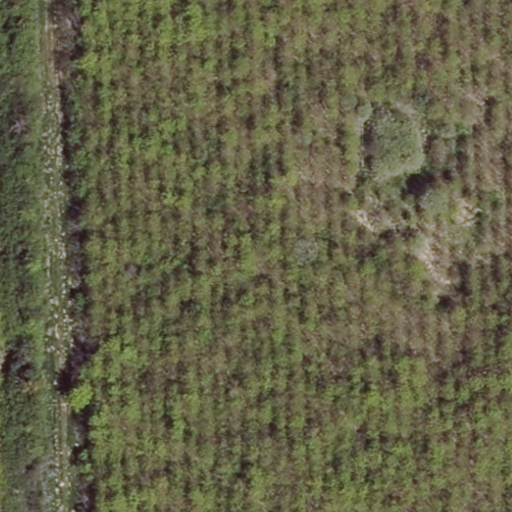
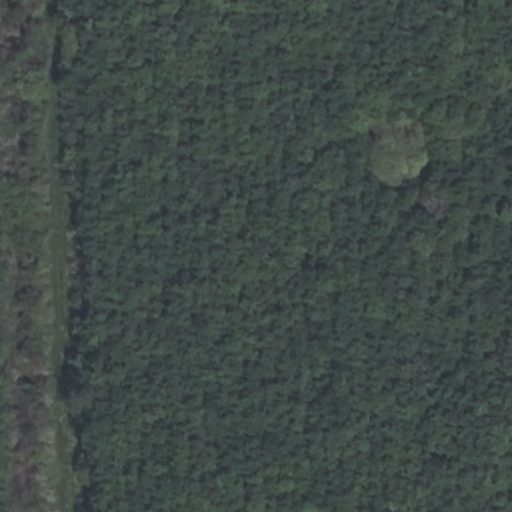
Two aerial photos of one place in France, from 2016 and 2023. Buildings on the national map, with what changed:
[]

